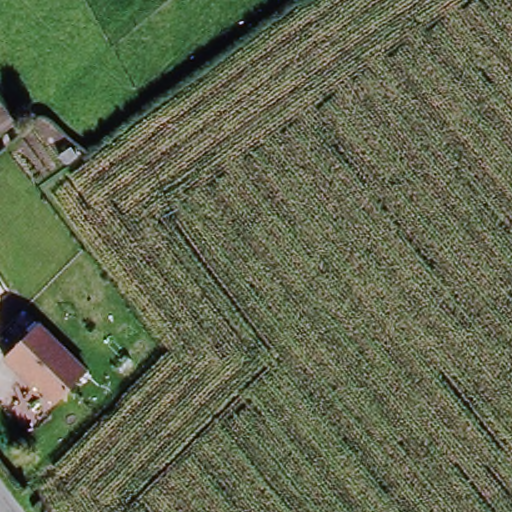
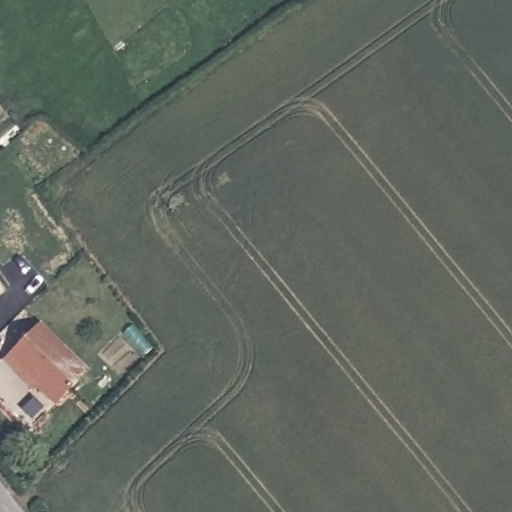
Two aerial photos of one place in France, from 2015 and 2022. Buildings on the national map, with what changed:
unchanged [(12,370),(1,360),(35,325),(82,372),(51,403),(15,367),(12,370)]

